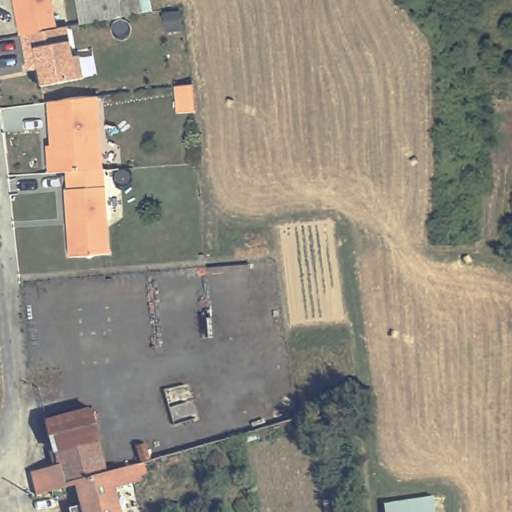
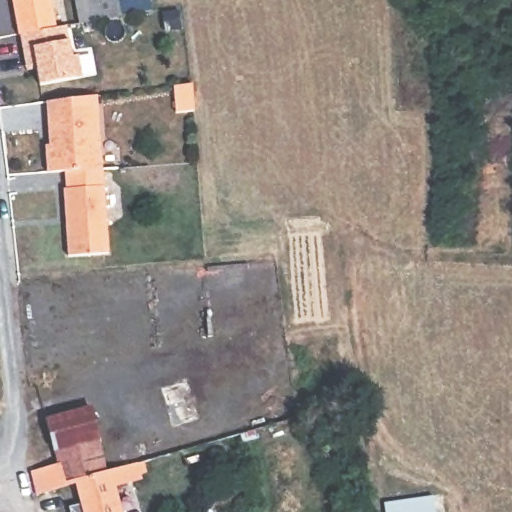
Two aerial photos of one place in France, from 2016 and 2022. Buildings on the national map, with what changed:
unchanged [(87,0),(122,0),(123,6),(127,6),(152,1),(156,15),(131,20),(126,21),(85,28),(81,1),(87,0)]
unchanged [(29,32),(40,30),(66,26),(71,55),(79,54),(83,76),(39,83),(36,68),(25,69),(20,33),(29,32)]
unchanged [(193,91),(195,107),(195,110),(177,112),(174,85),(192,83),(193,91)]
unchanged [(96,95),(104,168),(67,171),(49,172),(47,150),(51,149),(47,101),(96,95)]
unchanged [(66,188),(68,188),(67,171),(104,168),(105,168),(108,225),(110,253),(70,255),(68,226),(68,223),(67,212),(66,188)]
unchanged [(37,477),(64,469),(53,425),(95,412),(112,469),(115,468),(118,476),(81,487),(70,491),(43,499),(37,477)]
unchanged [(87,508),(81,487),(118,476),(147,467),(151,477),(145,479),(146,483),(117,491),(121,503),(130,501),(133,512),(87,512),(86,508),(87,508)]
unchanged [(444,512),(384,512),(383,503),(442,494),(444,512)]

